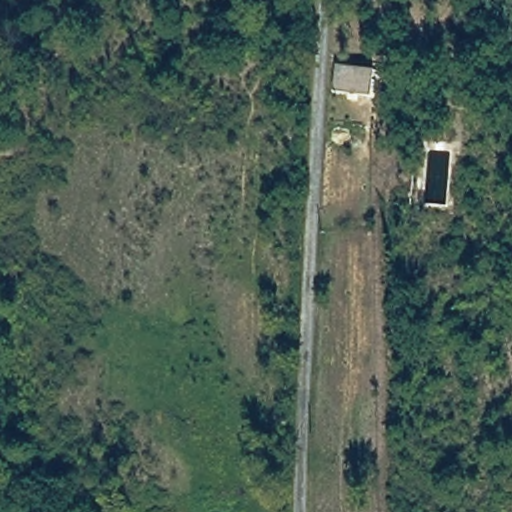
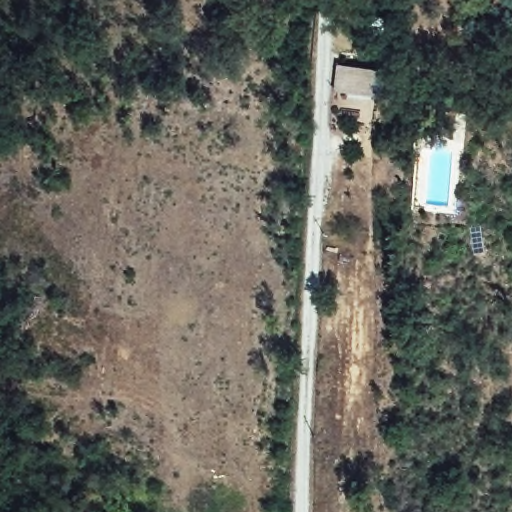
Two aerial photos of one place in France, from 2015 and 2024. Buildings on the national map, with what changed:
unchanged [(376,70),(373,95),(336,92),(339,66),(376,70)]

